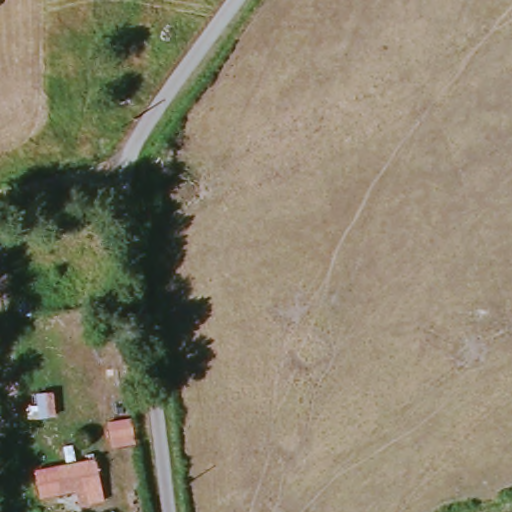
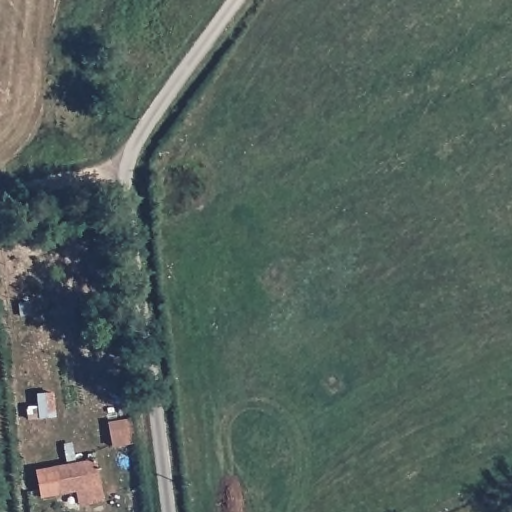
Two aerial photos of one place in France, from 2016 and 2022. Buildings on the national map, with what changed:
unchanged [(83,502),(82,491),(70,493),(63,495),(58,468),(100,460),(105,486),(108,498),(83,502)]

